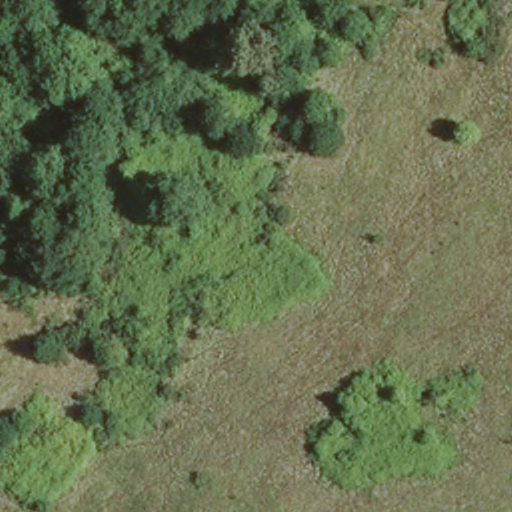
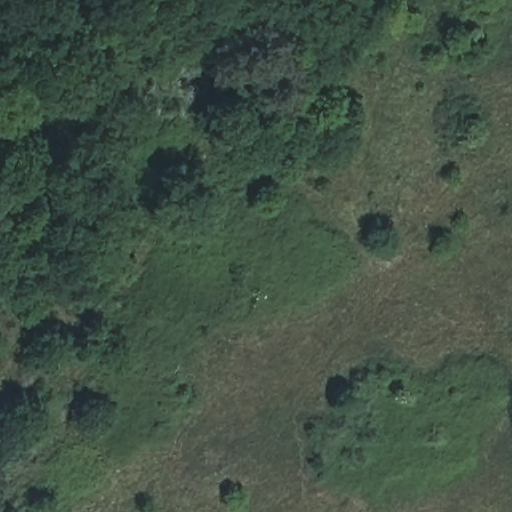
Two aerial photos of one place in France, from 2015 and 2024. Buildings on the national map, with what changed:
[]

